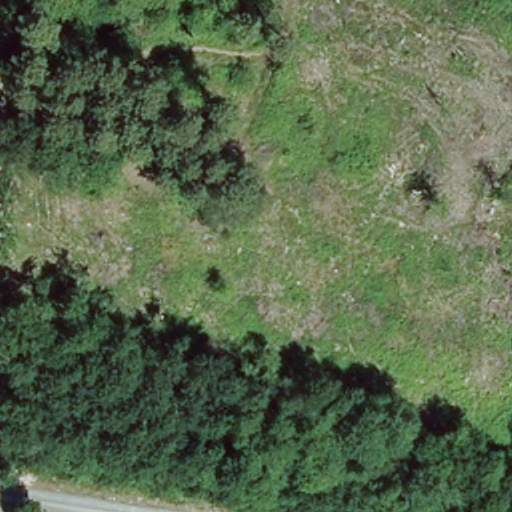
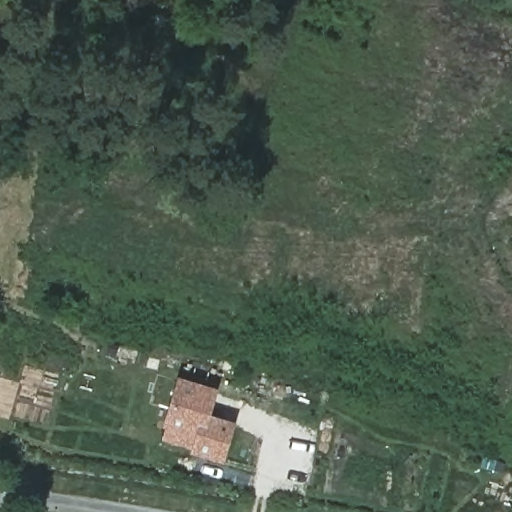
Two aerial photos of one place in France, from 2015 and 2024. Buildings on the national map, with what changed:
new [(182,382),(217,393),(209,419),(234,426),(224,459),(197,451),(164,442),(169,425),(182,382)]

